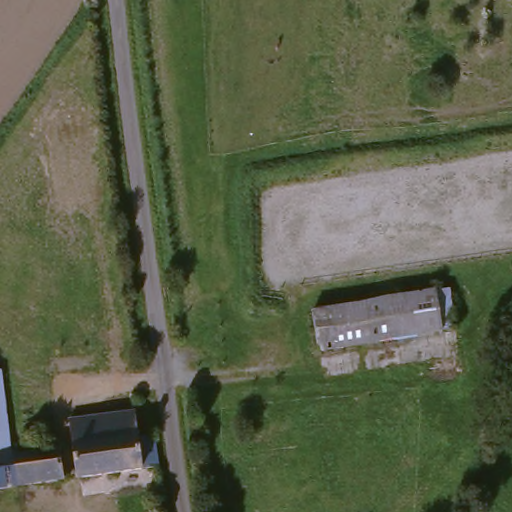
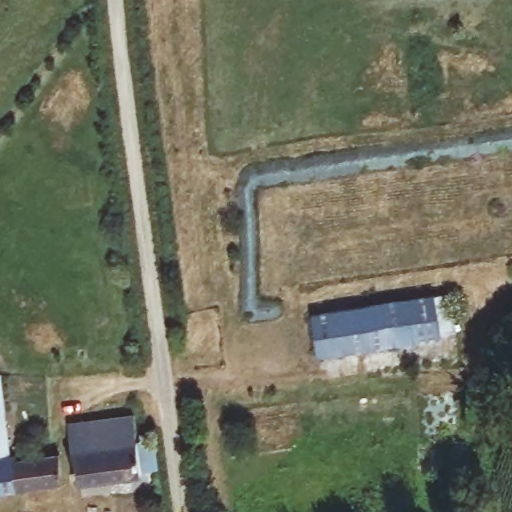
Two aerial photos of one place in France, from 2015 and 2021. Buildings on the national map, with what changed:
unchanged [(444,290),(452,333),(318,356),(308,307),(444,290)]
unchanged [(16,449),(16,454),(58,448),(61,477),(0,487),(0,396),(8,449),(16,449)]
unchanged [(128,410),(132,429),(146,429),(151,456),(151,464),(69,475),(60,419),(128,410)]

